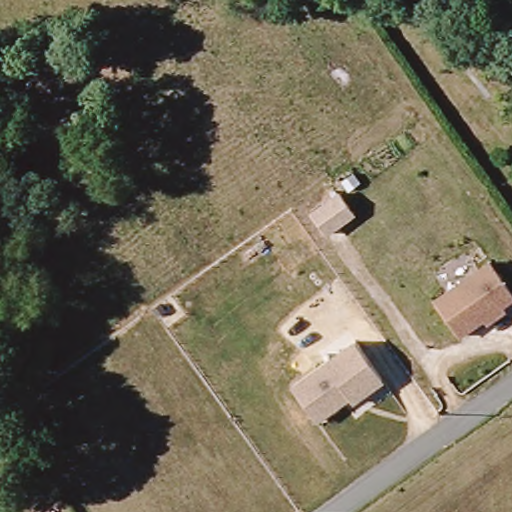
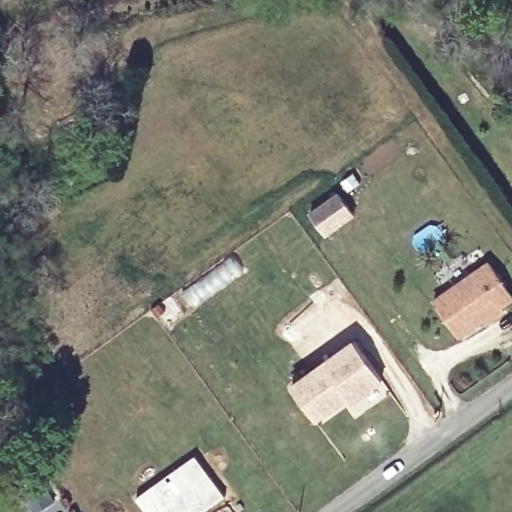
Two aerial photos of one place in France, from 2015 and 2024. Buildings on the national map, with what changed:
unchanged [(339,188),(356,214),(325,236),(308,211),(339,188)]
unchanged [(440,280),(456,268),(462,277),(487,261),(512,296),(512,301),(501,308),(505,312),(483,327),(480,321),(460,335),(430,302),(445,289),(440,280)]
unchanged [(355,336),(385,379),(355,403),(350,396),(316,421),(289,384),(355,336)]
new [(195,456),(223,497),(202,512),(146,512),(135,498),(195,456)]

